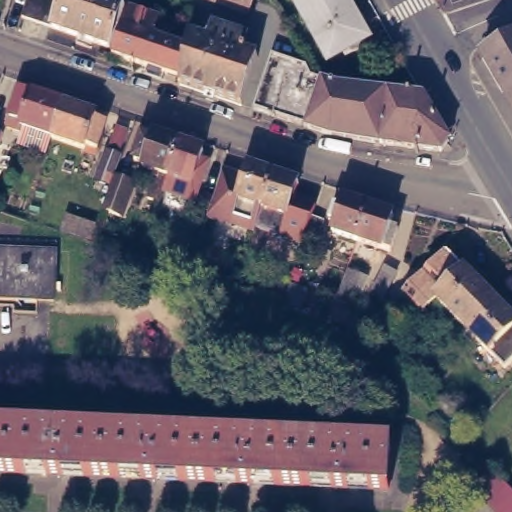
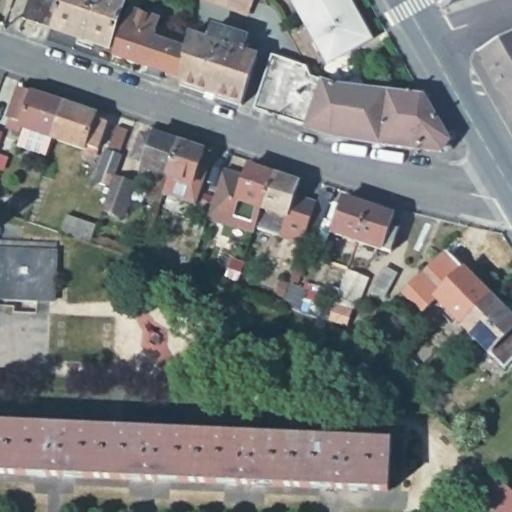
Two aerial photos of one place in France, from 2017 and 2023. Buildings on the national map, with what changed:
unchanged [(57,19),(27,9),(30,0),(128,0),(115,39),(57,19)]
unchanged [(223,0),(252,0),(249,9),(223,0)]
unchanged [(351,0),(352,1),(335,11),(327,7),(307,18),(298,0),(351,0)]
unchanged [(127,21),(128,21),(135,1),(164,11),(157,31),(172,36),(187,41),(182,58),(179,67),(164,62),(117,47),(127,21)]
unchanged [(327,7),(335,11),(352,1),(373,40),(335,61),(307,18),(327,7)]
unchanged [(179,67),(182,58),(187,41),(193,26),(215,32),(219,19),(252,30),(249,40),(252,41),(250,44),(263,49),(247,97),(177,74),(179,67)]
unchanged [(477,46),(512,26),(512,107),(477,46)]
unchanged [(271,57),(273,52),(307,63),(312,73),(337,81),(349,82),(388,87),(422,91),(449,137),(442,148),(380,140),(332,132),(307,124),(254,106),(271,57)]
unchanged [(55,130),(25,121),(24,125),(11,121),(14,112),(24,83),(65,97),(55,130)]
unchanged [(98,109),(94,120),(106,124),(100,142),(88,138),(86,142),(55,130),(65,97),(98,109)]
unchanged [(0,141),(0,121),(7,123),(0,141)]
unchanged [(160,181),(165,171),(157,169),(155,174),(144,170),(145,164),(147,165),(149,161),(140,157),(148,134),(157,137),(159,132),(185,140),(207,148),(205,157),(212,159),(198,199),(167,189),(163,197),(150,192),(155,180),(160,181)]
unchanged [(225,167),(247,175),(252,160),(277,169),(266,200),(265,205),(259,220),(257,225),(210,210),(225,167)]
unchanged [(259,220),(265,205),(266,200),(277,169),(278,167),(302,176),(297,191),(320,198),(305,236),(259,220)]
unchanged [(123,178),(142,185),(130,217),(111,211),(123,178)]
unchanged [(387,216),(394,218),(385,244),(354,232),(330,224),(333,214),(327,212),(332,197),(338,199),(340,191),(365,199),(390,207),(387,216)]
unchanged [(60,297),(0,294),(0,236),(62,239),(60,297)]
unchanged [(431,292),(424,300),(415,291),(409,297),(400,287),(443,247),(460,264),(486,292),(457,320),(431,292)]
unchanged [(486,292),(495,303),(500,297),(505,298),(512,305),(512,309),(512,313),(508,316),(512,320),(512,345),(497,361),(485,347),(457,320),(486,292)]
unchanged [(342,310),(359,316),(353,329),(336,323),(342,310)]
unchanged [(0,470),(0,423),(390,441),(389,487),(0,470)]
unchanged [(474,486),(492,467),(512,487),(512,512),(498,512),(474,486)]

